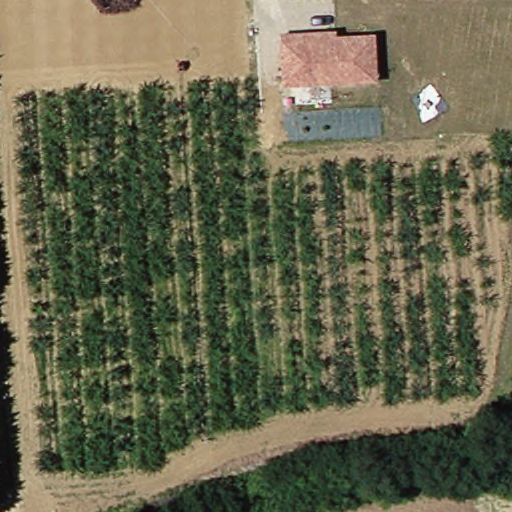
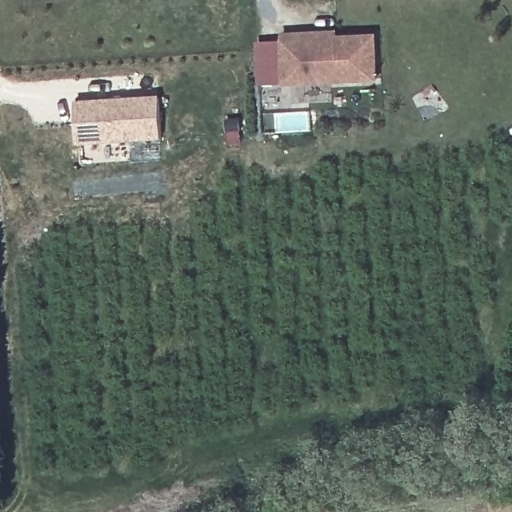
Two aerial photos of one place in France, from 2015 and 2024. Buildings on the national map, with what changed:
unchanged [(376,82),(281,85),(279,33),(336,30),(336,35),(375,34),(376,82)]
new [(79,147),(76,102),(159,96),(162,141),(79,147)]

